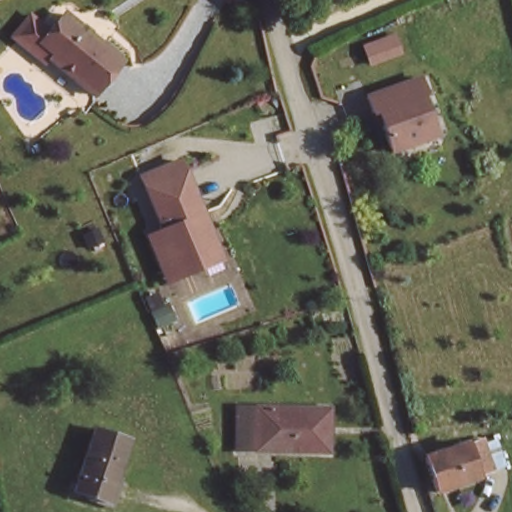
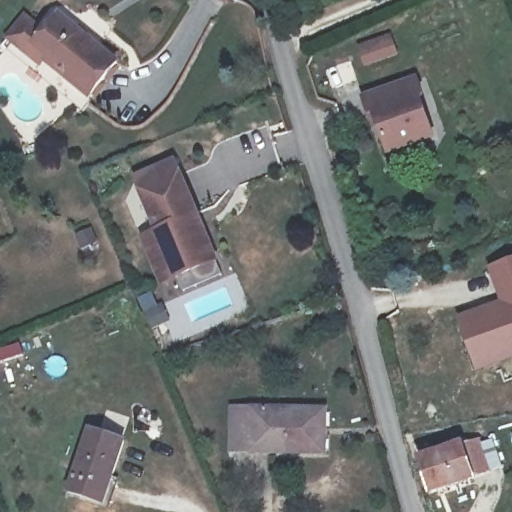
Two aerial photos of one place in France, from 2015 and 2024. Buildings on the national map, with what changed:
unchanged [(124,58),(96,94),(60,64),(65,58),(50,45),(41,56),(10,31),(27,9),(48,26),(62,8),(124,58)]
unchanged [(420,96),(417,98),(428,131),(409,138),(411,144),(395,149),(381,109),(377,111),(371,95),(415,80),(420,96)]
unchanged [(224,260),(159,285),(137,234),(155,228),(133,177),(183,160),(224,260)]
new [(500,301),(489,267),(512,258),(512,359),(475,372),(457,316),(500,301)]
unchanged [(323,409),(325,449),(241,455),(239,414),(323,409)]
unchanged [(131,447),(106,502),(72,490),(97,433),(131,447)]
unchanged [(412,469),(425,464),(423,451),(450,446),(457,452),(477,448),(484,482),(419,494),(412,469)]

